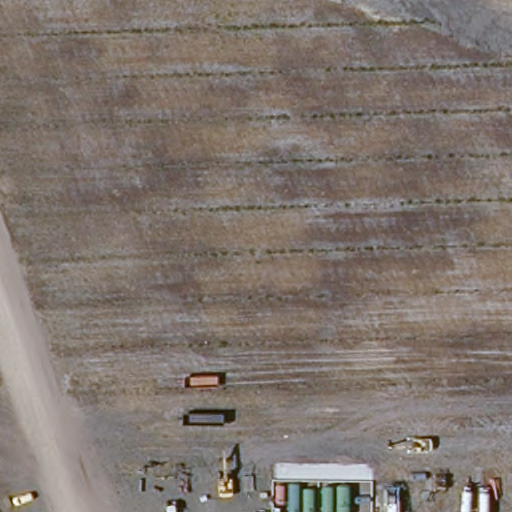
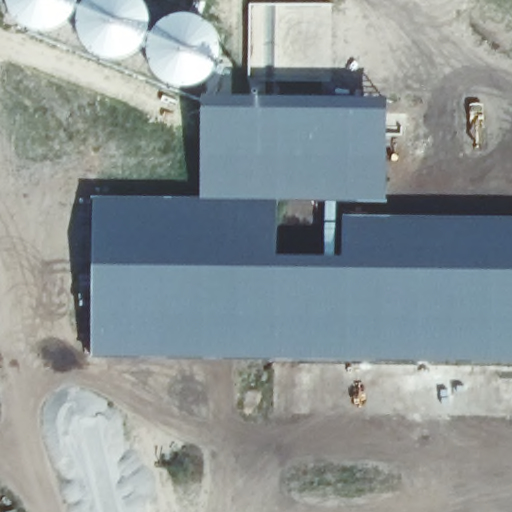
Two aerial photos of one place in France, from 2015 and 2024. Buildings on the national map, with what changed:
new [(247,2),(331,2),(331,68),(274,70),(247,69),(247,2)]
new [(201,93),(321,96),(321,102),(321,104),(276,106),(200,105),(201,93)]
new [(200,105),(276,106),(321,104),(321,102),(335,102),(335,96),(386,99),(386,202),(278,200),(199,196),(200,105)]
new [(91,195),(199,196),(278,200),(277,255),(338,255),(341,215),(499,215),(512,215),(512,365),(479,365),(406,361),(347,361),(199,357),(90,357),(91,195)]

